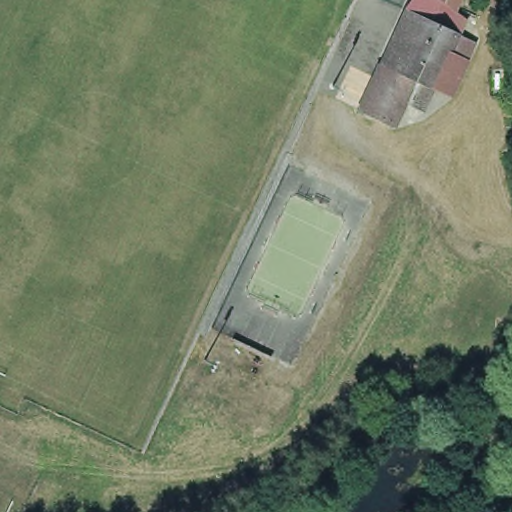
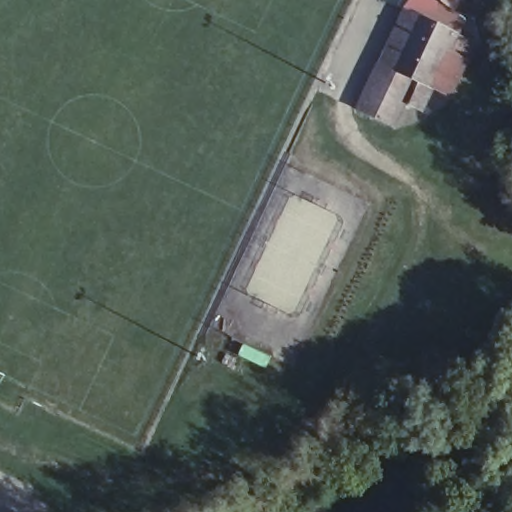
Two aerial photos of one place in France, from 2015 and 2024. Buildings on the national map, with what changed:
unchanged [(419,81),(397,127),(360,108),(382,65),(411,9),(406,8),(412,0),(444,0),(457,11),(467,19),(460,34),(479,43),(471,61),(452,54),(435,89),(434,89),(426,109),(414,104),(422,84),(419,81)]
unchanged [(444,0),(462,0),(457,11),(444,0)]

